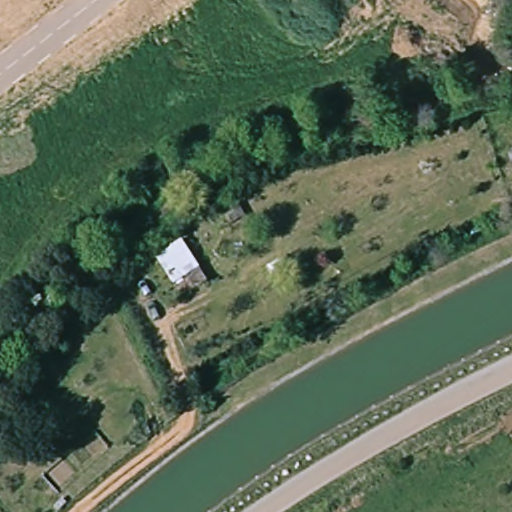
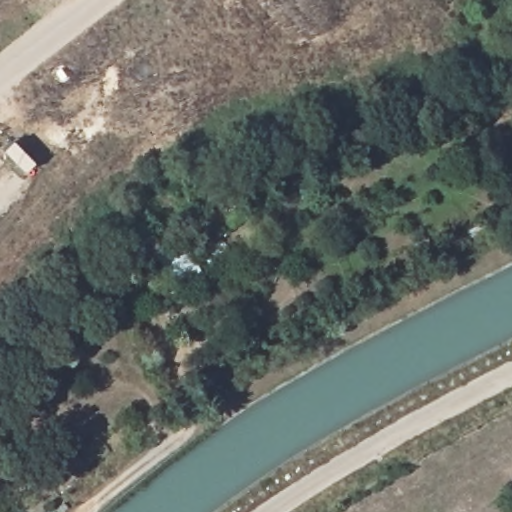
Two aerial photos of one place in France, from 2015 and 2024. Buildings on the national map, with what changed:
unchanged [(207,282),(194,291),(186,279),(174,287),(156,257),(182,242),(207,282)]

